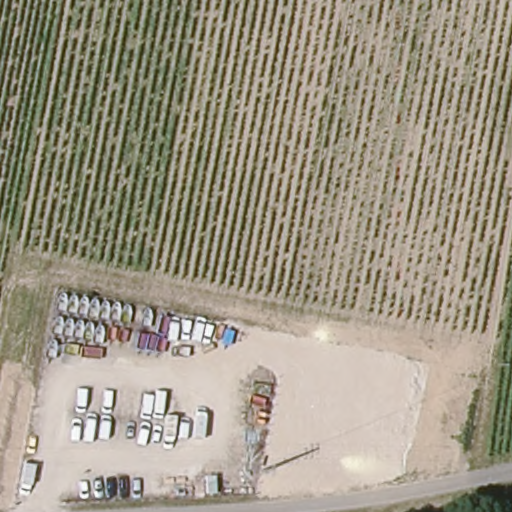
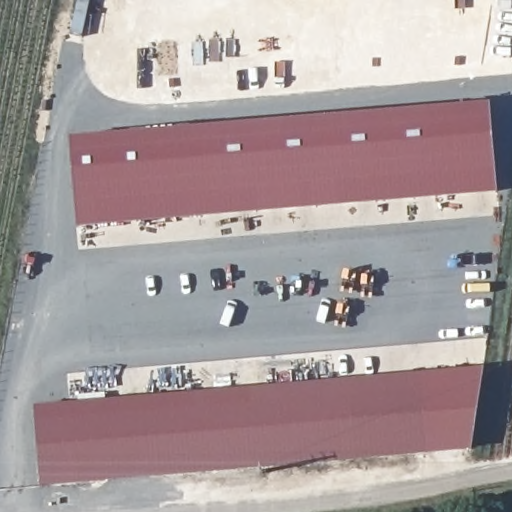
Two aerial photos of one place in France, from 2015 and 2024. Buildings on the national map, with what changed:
new [(70,137),(490,101),(497,192),(78,227),(70,137)]
new [(484,366),(471,448),(427,453),(420,372),(484,366)]
new [(420,370),(427,453),(40,487),(34,405),(420,370)]

